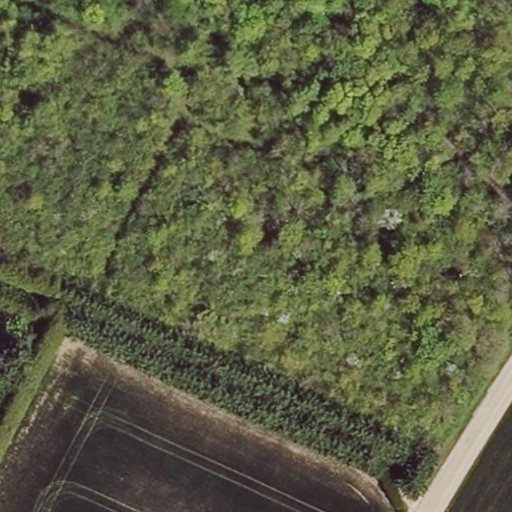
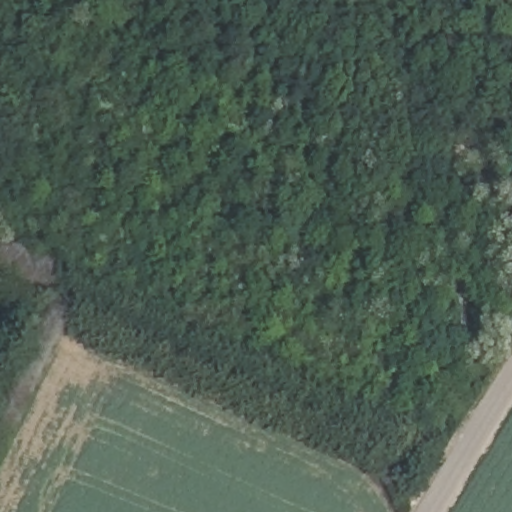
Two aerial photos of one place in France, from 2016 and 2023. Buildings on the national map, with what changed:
[]

